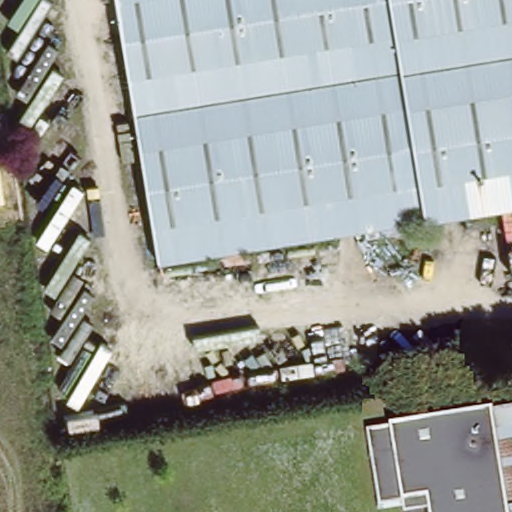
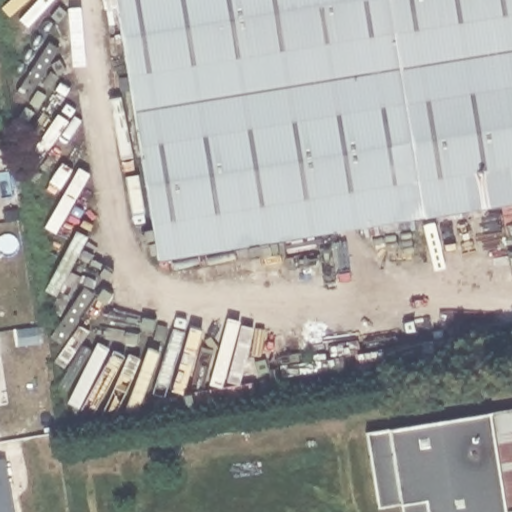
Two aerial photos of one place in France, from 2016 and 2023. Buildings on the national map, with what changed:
unchanged [(121,0),(512,0),(512,203),(163,260),(121,0)]
unchanged [(512,407),(512,512),(505,512),(488,411),(512,407)]
unchanged [(423,499),(378,506),(366,430),(488,411),(505,512),(425,512),(423,499)]
new [(7,457),(16,512),(0,512),(0,458),(7,457)]

